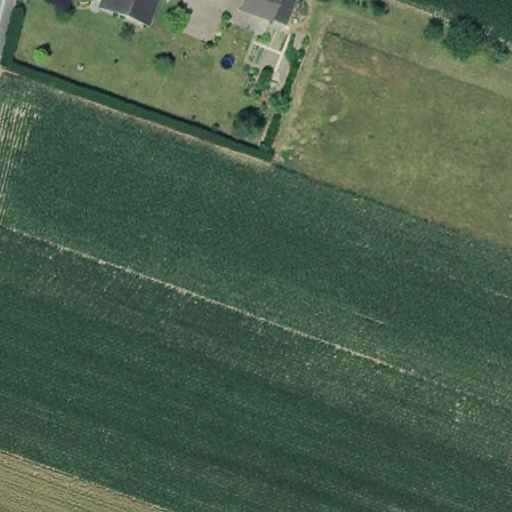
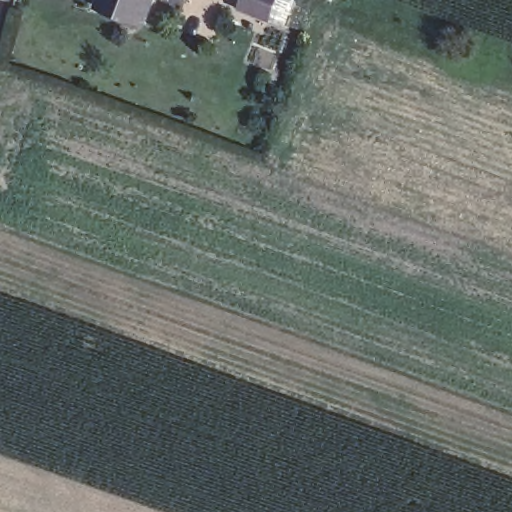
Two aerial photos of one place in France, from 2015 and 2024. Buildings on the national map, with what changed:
unchanged [(142,22),(93,4),(94,0),(150,0),(142,22)]
unchanged [(281,23),(252,12),(256,0),(289,0),(281,23)]

